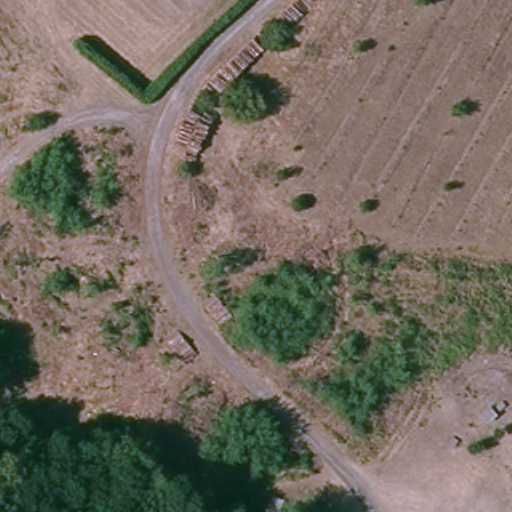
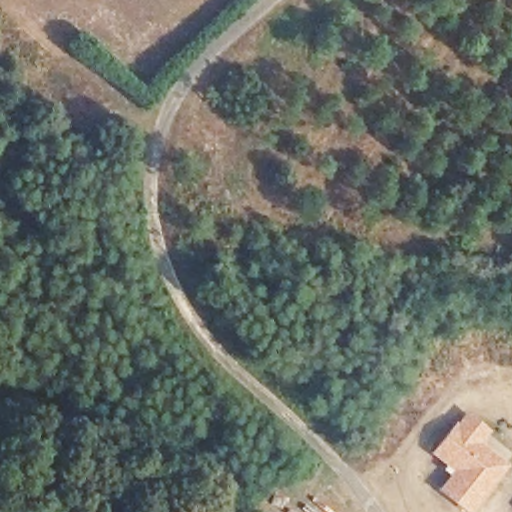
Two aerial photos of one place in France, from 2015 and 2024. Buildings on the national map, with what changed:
new [(434,456),(456,428),(458,431),(467,419),(487,435),(478,447),(505,469),(471,512),(465,512),(441,493),(452,480),(443,472),(448,467),(434,456)]

